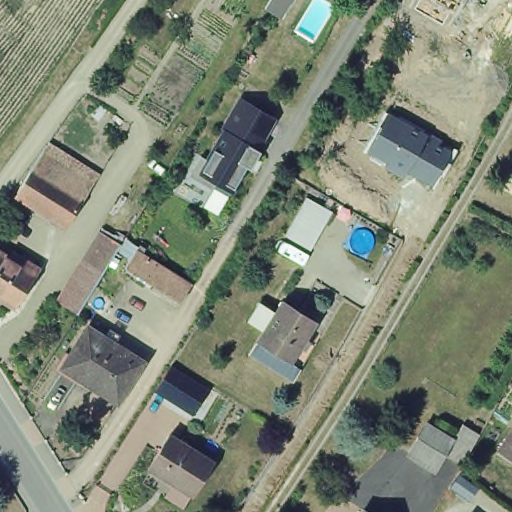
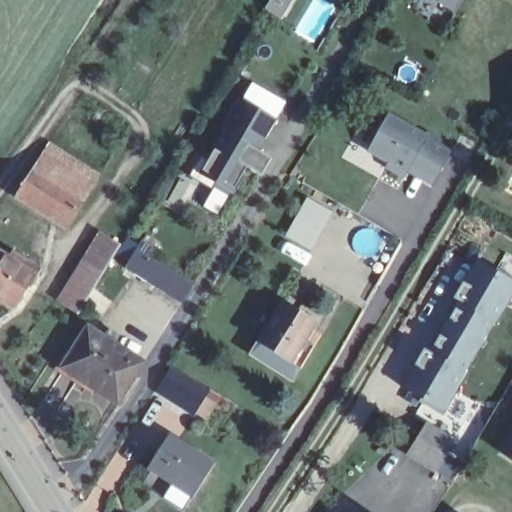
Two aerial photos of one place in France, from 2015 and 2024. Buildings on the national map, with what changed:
unchanged [(269,8),(274,0),(293,0),(283,17),(269,8)]
unchanged [(462,0),(447,27),(413,8),(417,0),(462,0)]
unchanged [(255,164),(251,161),(236,187),(220,178),(217,184),(193,170),(205,150),(212,155),(229,127),(227,126),(246,94),(276,111),(258,143),(261,144),(265,147),(255,164)]
unchanged [(454,150),(433,186),(407,171),(404,178),(384,167),(386,162),(366,150),(387,112),(454,150)]
unchanged [(44,207),(17,190),(30,171),(45,147),(47,144),(96,174),(94,180),(80,202),(67,222),(44,207)]
unchanged [(307,198),(332,213),(310,251),(285,236),(307,198)]
unchanged [(82,254),(100,224),(122,236),(111,254),(103,265),(80,303),(59,291),(82,254)]
unchanged [(176,298),(122,262),(132,246),(136,240),(142,244),(139,249),(187,281),(176,298)]
unchanged [(5,248),(33,265),(31,269),(10,302),(0,296),(0,250),(2,252),(5,248)]
new [(442,411),(402,389),(477,261),(512,282),(512,291),(442,411)]
unchanged [(288,369),(262,352),(247,343),(257,329),(262,319),(249,311),(260,294),(272,303),(281,290),(296,299),(314,311),(302,328),(312,334),(288,369)]
unchanged [(114,399),(57,363),(83,322),(101,333),(107,324),(115,328),(109,338),(139,357),(114,399)]
unchanged [(207,390),(191,415),(153,392),(162,377),(169,366),(207,390)]
unchanged [(407,453),(417,438),(426,424),(454,441),(464,425),(480,435),(461,465),(444,455),(435,470),(407,453)]
unchanged [(497,446),(512,424),(512,456),(497,446)]
unchanged [(185,487),(177,481),(143,459),(164,426),(198,448),(207,454),(185,487)]
unchanged [(357,505),(367,512),(353,512),(357,505)]

